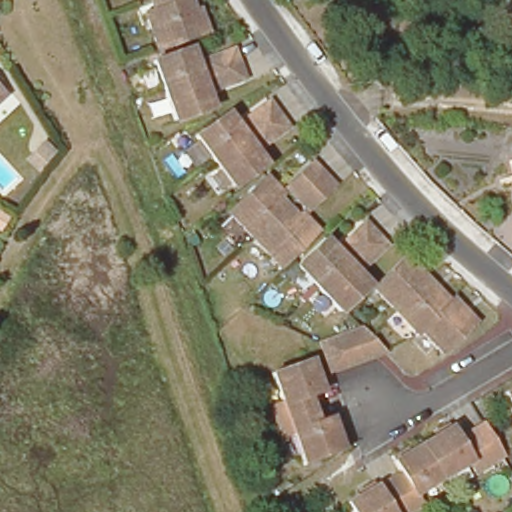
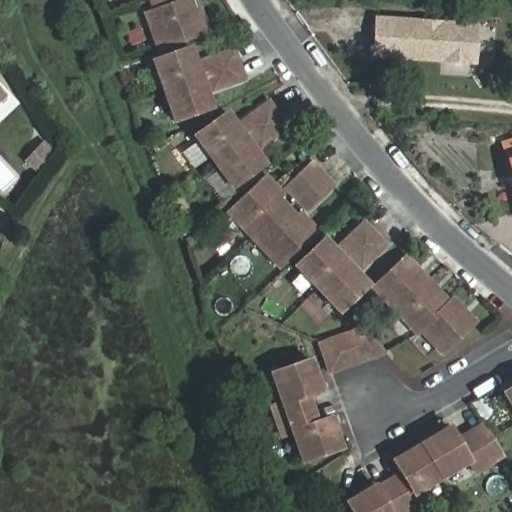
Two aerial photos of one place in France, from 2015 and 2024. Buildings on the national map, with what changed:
unchanged [(201,18),(206,32),(158,49),(146,13),(155,10),(151,0),(188,0),(195,19),(201,18)]
new [(380,17),(480,24),(477,59),(377,53),(380,17)]
unchanged [(189,48),(200,78),(212,108),(175,121),(163,91),(152,61),(189,48)]
unchanged [(232,49),(237,64),(243,78),(212,90),(207,75),(202,61),(232,49)]
unchanged [(5,94),(0,99),(0,88),(5,94)]
unchanged [(268,102),(278,114),(287,127),(261,146),(251,134),(242,121),(268,102)]
unchanged [(246,138),(265,164),(232,187),(214,161),(195,135),(227,112),(246,138)]
unchanged [(512,160),(512,167),(510,161),(512,160)]
unchanged [(310,162),(321,173),(331,185),(308,206),(305,210),(294,198),(283,187),(310,162)]
unchanged [(263,176),(275,188),(271,191),(285,206),(299,221),(303,218),(315,230),(290,254),(277,265),(252,238),(226,210),(263,176)]
unchanged [(362,222),(372,234),(382,245),(358,267),(347,256),(337,245),(362,222)]
unchanged [(321,238),(342,261),(364,284),(335,311),(313,288),(292,265),(321,238)]
unchanged [(417,331),(413,334),(391,310),(368,286),(402,256),(423,280),(446,303),(450,300),(472,324),(438,354),(417,331)]
unchanged [(366,326),(387,349),(389,350),(382,352),(334,368),(334,367),(325,339),(366,326)]
unchanged [(315,355),(324,385),(312,389),(317,404),(321,419),(333,415),(343,445),(305,457),(295,427),(287,430),(282,415),(278,400),(286,398),(276,368),(315,355)]
unchanged [(512,406),(503,391),(512,386),(512,406)]
unchanged [(373,483),(374,485),(387,477),(399,470),(392,457),(419,441),(447,425),(454,438),(467,430),(481,422),(500,453),(486,461),(472,469),(467,458),(440,474),(411,491),(417,501),(405,509),(400,512),(353,512),(346,498),(373,483)]

